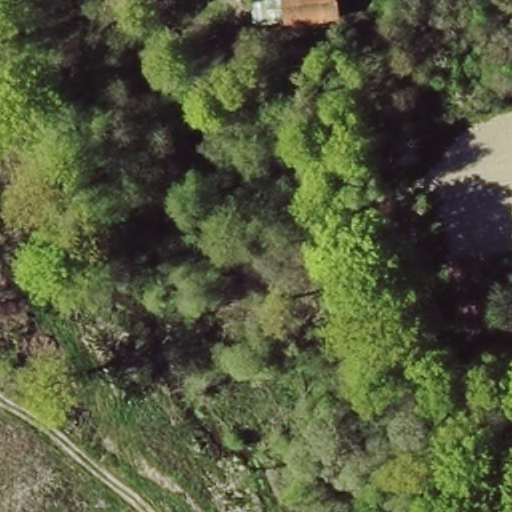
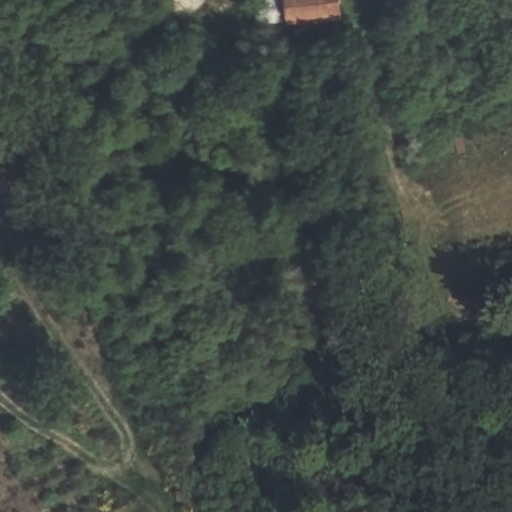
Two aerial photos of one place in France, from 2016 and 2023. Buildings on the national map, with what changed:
unchanged [(342,10),(290,21),(286,0),(340,0),(342,10)]

